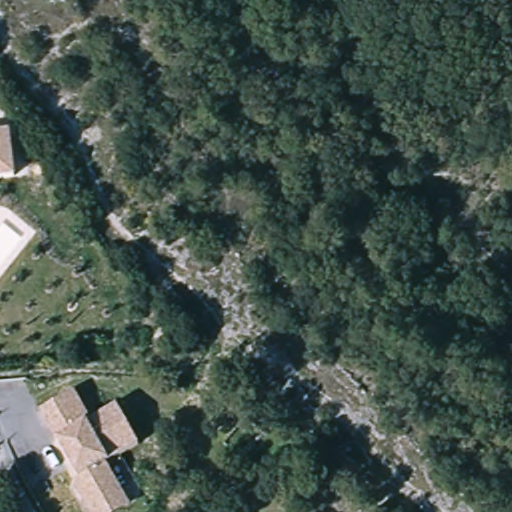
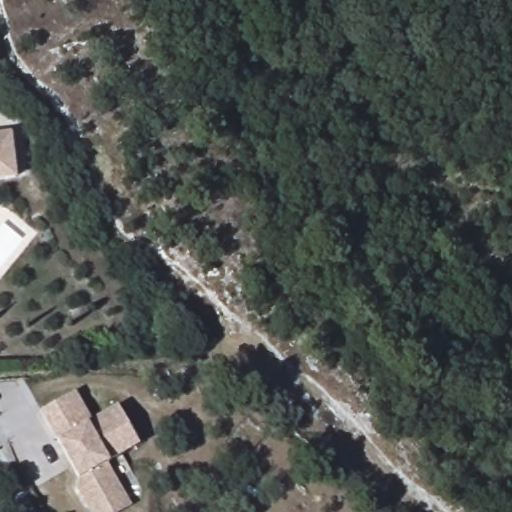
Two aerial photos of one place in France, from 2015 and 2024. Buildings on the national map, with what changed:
unchanged [(14,135),(18,185),(0,186),(0,136),(14,135)]
unchanged [(86,512),(76,494),(78,478),(41,412),(71,395),(88,425),(118,408),(140,445),(102,467),(118,494),(127,508),(120,512),(86,512)]

